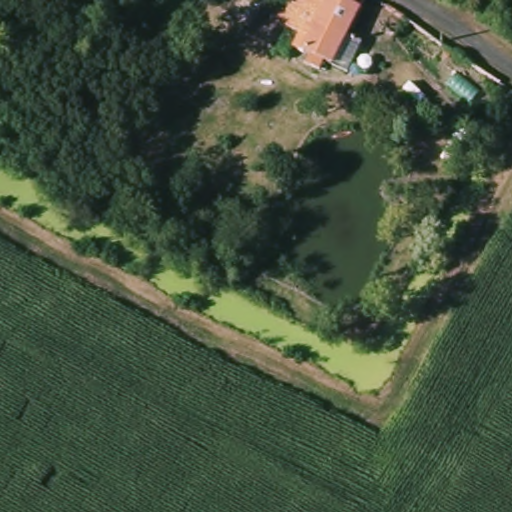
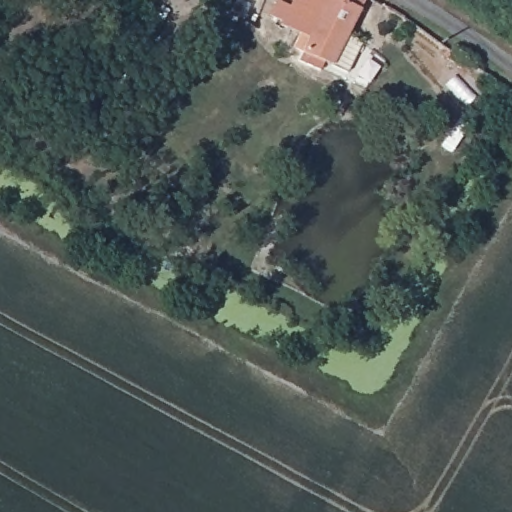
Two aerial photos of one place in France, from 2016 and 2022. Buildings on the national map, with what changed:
unchanged [(327,61),(324,68),(309,61),(313,53),(306,50),(308,46),(298,41),(304,30),(285,20),(288,14),(276,7),(280,0),(367,0),(335,65),(327,61)]
unchanged [(388,30),(380,24),(390,7),(398,13),(405,18),(399,29),(396,34),(388,30)]

